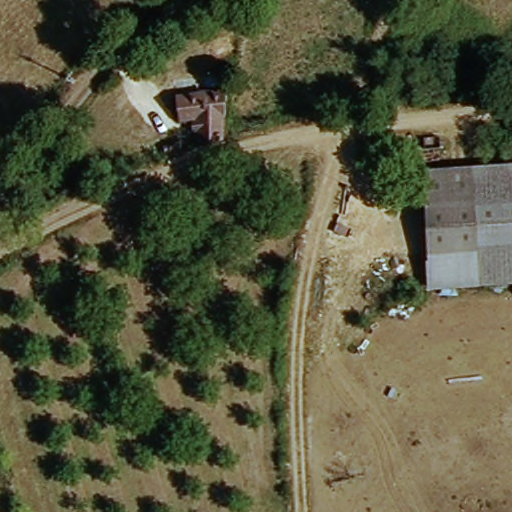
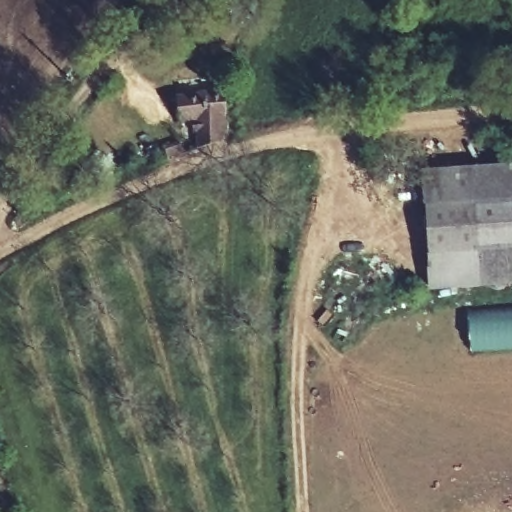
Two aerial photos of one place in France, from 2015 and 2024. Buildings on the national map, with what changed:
unchanged [(190,120),(174,122),(172,94),(221,89),(228,139),(197,148),(196,130),(191,130),(190,120)]
unchanged [(142,163),(136,151),(151,145),(157,158),(142,163)]
unchanged [(421,169),(512,164),(512,279),(428,284),(421,169)]
new [(468,310),(512,307),(512,349),(470,352),(468,310)]

